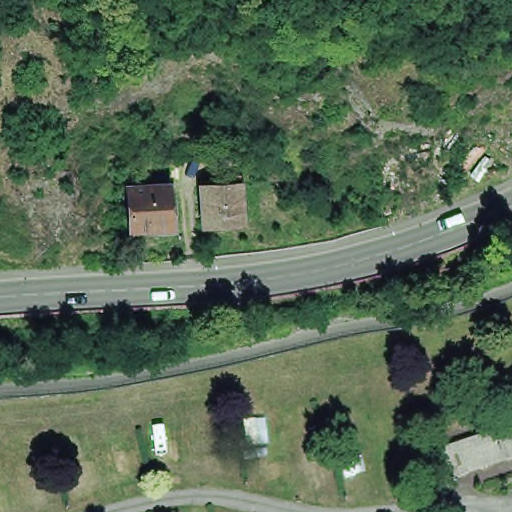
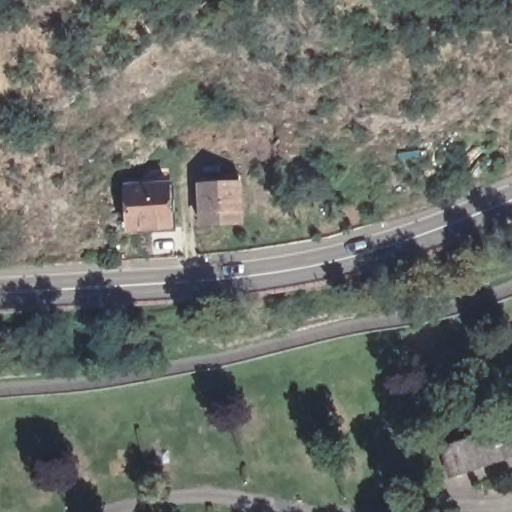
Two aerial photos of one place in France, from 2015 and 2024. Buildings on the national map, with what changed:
unchanged [(228,179),(228,171),(245,170),(247,217),(208,220),(206,181),(228,179)]
unchanged [(172,226),(131,228),(130,189),(170,187),(172,226)]
unchanged [(512,453),(472,467),(462,438),(512,422),(512,453)]

